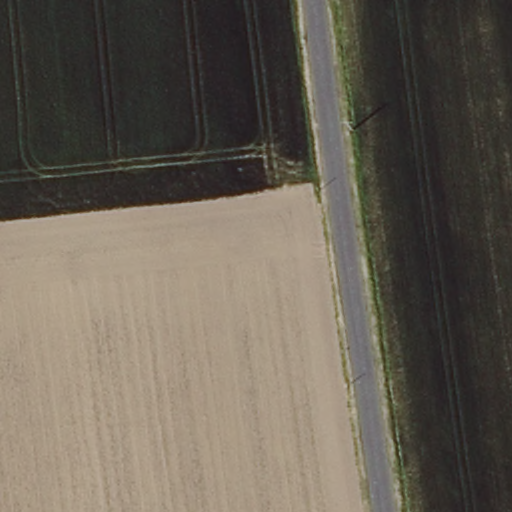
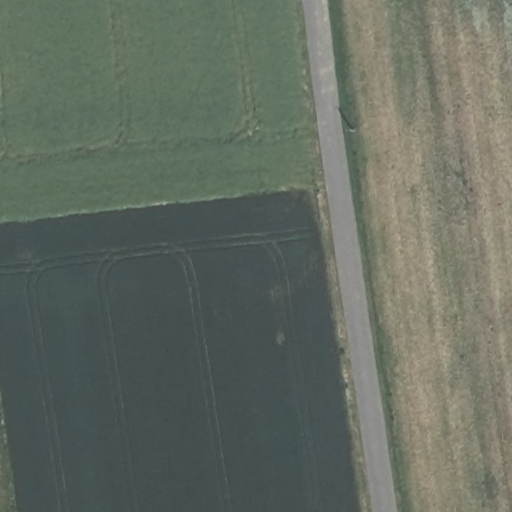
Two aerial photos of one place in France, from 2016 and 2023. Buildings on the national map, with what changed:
[]

